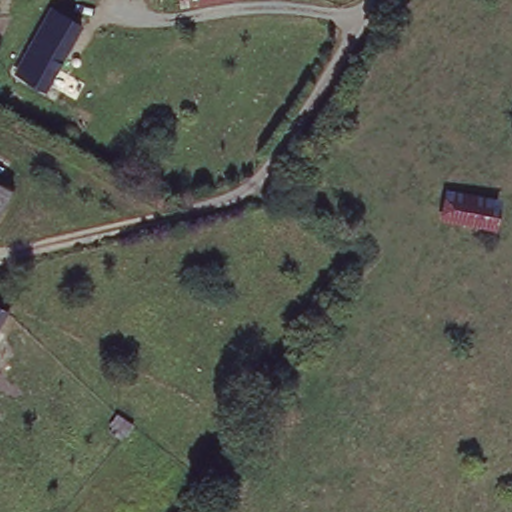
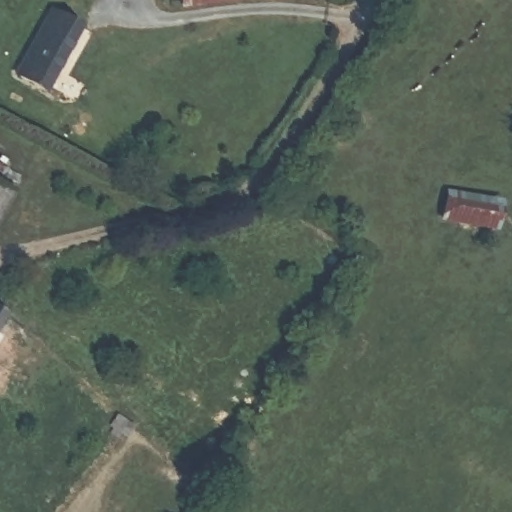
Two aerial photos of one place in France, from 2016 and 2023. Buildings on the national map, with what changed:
unchanged [(183,0),(196,0),(183,3),(183,0)]
unchanged [(90,29),(55,96),(21,76),(57,11),(90,29)]
unchanged [(0,220),(0,182),(14,188),(0,220)]
unchanged [(502,195),(500,223),(447,215),(450,188),(502,195)]
unchanged [(0,331),(0,305),(12,312),(0,331)]

